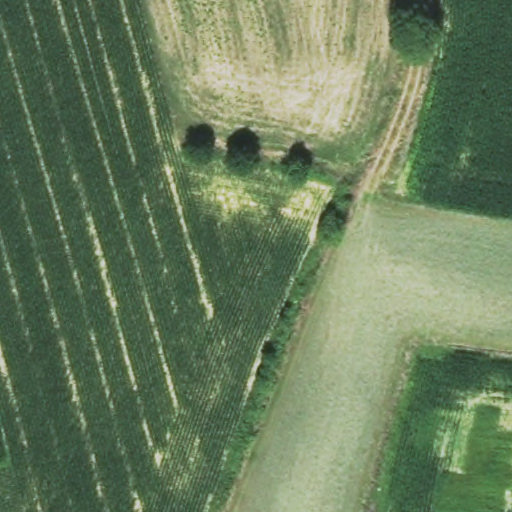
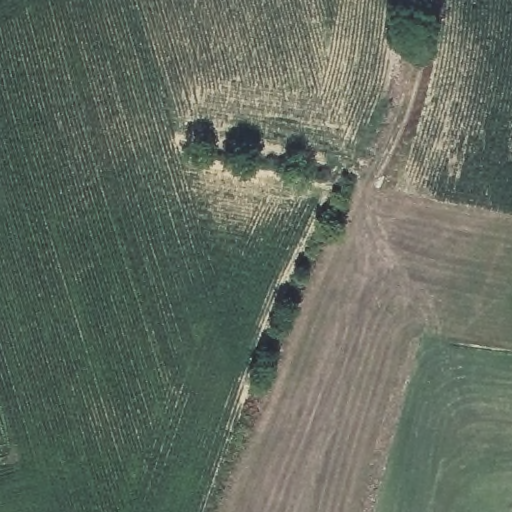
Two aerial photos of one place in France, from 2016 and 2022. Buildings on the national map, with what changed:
[]

